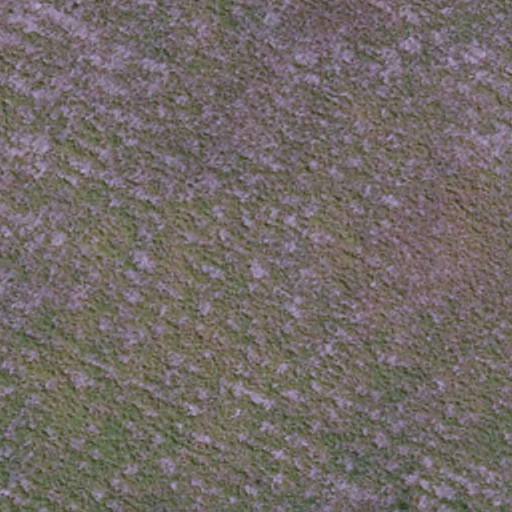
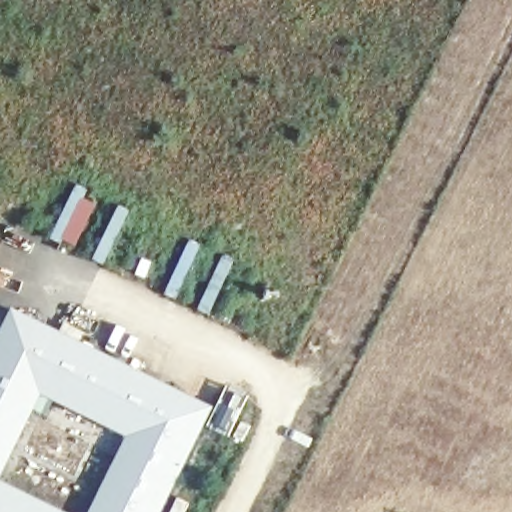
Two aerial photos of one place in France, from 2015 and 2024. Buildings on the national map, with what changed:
new [(97,206),(76,247),(51,239),(77,185),(88,190),(83,199),(97,206)]
new [(213,407),(162,512),(89,512),(127,437),(41,395),(0,479),(0,331),(11,308),(213,407)]
new [(63,512),(0,512),(0,482),(63,512)]

